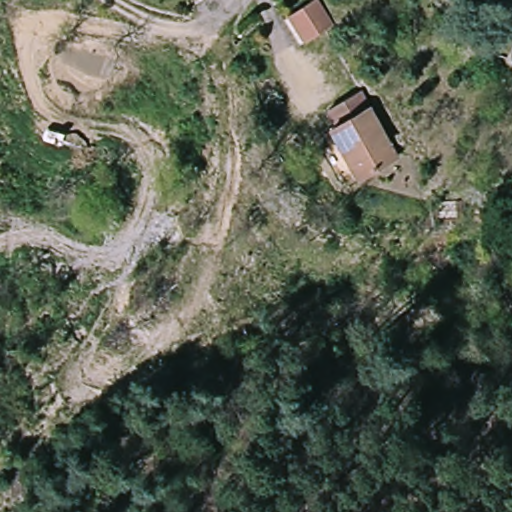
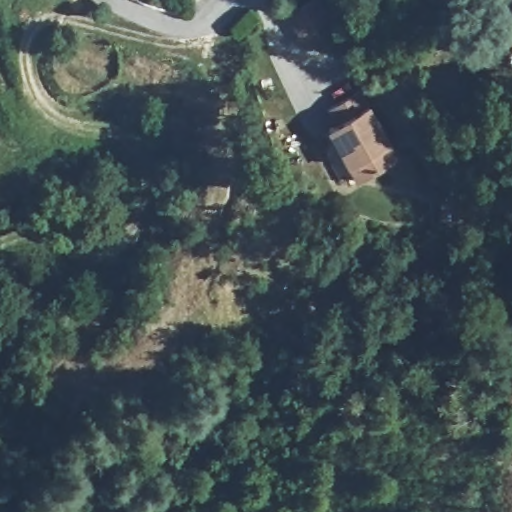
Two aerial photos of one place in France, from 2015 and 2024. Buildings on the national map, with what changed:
unchanged [(311,41),(293,18),(315,2),(333,26),(311,41)]
unchanged [(326,130),(333,126),(326,114),(353,98),(392,160),(358,180),(326,130)]

